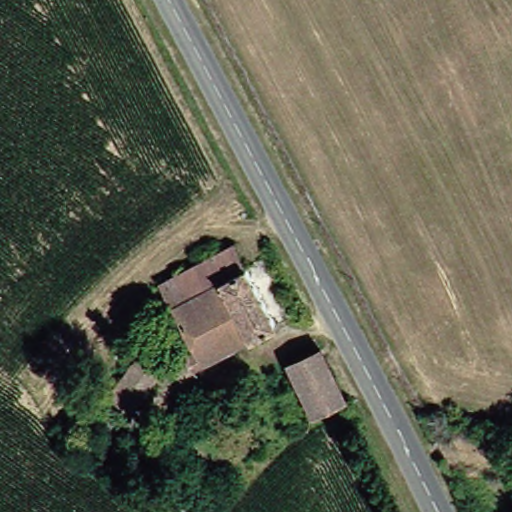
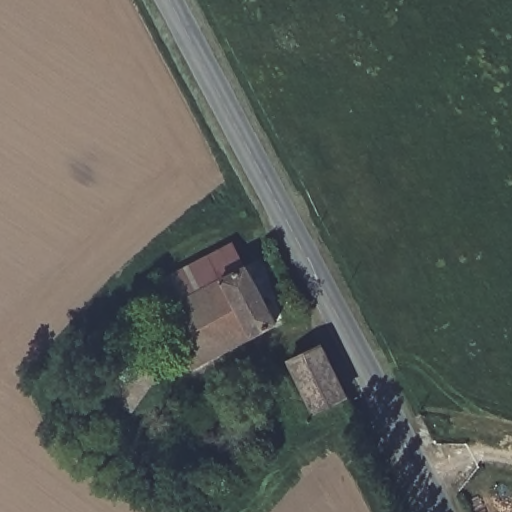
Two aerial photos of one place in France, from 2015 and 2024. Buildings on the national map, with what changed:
unchanged [(155,277),(225,241),(237,264),(168,300),(155,277)]
unchanged [(241,262),(270,319),(189,360),(182,345),(190,341),(168,300),(237,264),(241,262)]
unchanged [(337,396),(311,409),(285,361),(311,347),(337,396)]
unchanged [(129,409),(101,393),(125,355),(151,371),(129,409)]

